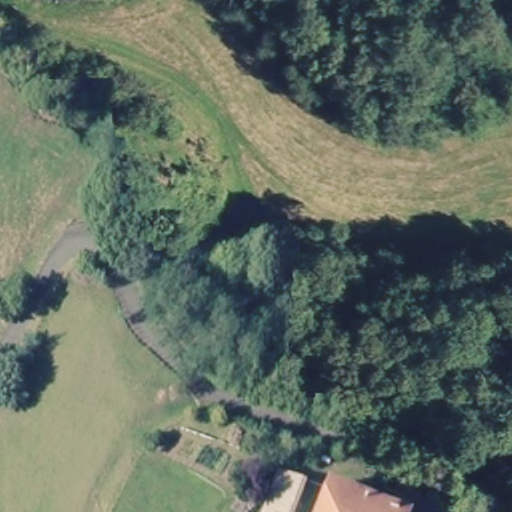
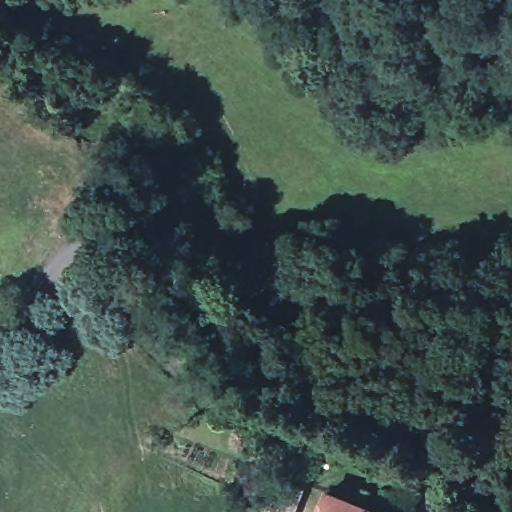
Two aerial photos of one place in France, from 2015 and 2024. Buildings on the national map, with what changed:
unchanged [(392,473),(413,482),(405,512),(380,512),(392,473)]
unchanged [(320,494),(373,512),(314,512),(320,494)]

